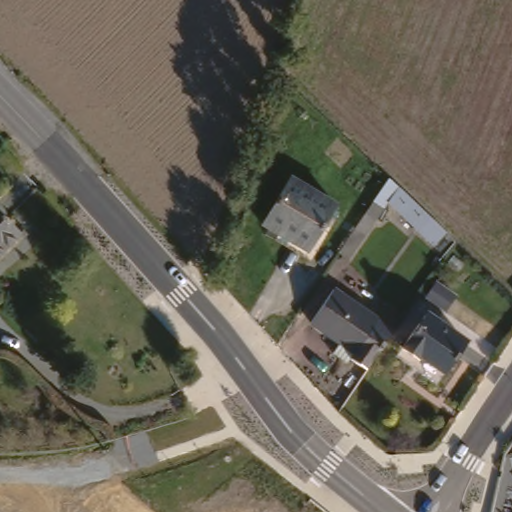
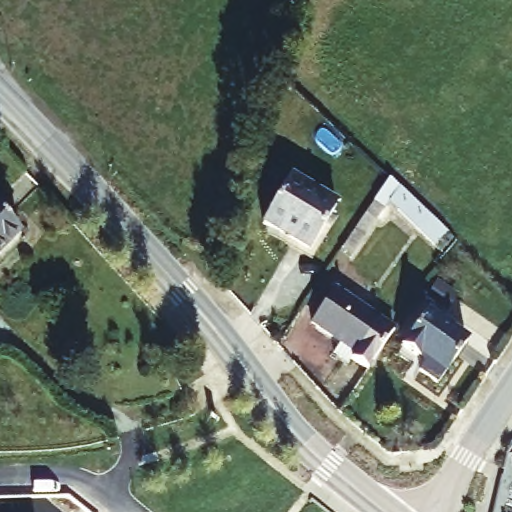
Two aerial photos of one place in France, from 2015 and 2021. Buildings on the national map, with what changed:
unchanged [(394,207),(383,217),(369,201),(393,174),(452,231),(437,248),(394,207)]
unchanged [(267,223),(292,175),(337,203),(307,249),(267,223)]
unchanged [(0,253),(0,214),(20,234),(0,253)]
unchanged [(338,285),(396,327),(372,363),(314,324),(338,285)]
unchanged [(403,350),(426,312),(468,336),(448,369),(422,353),(417,358),(403,350)]

